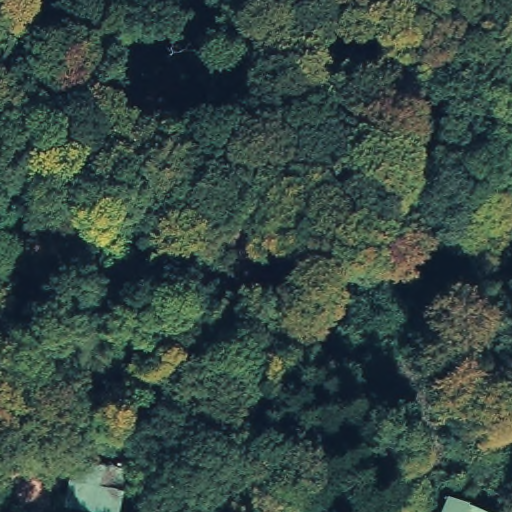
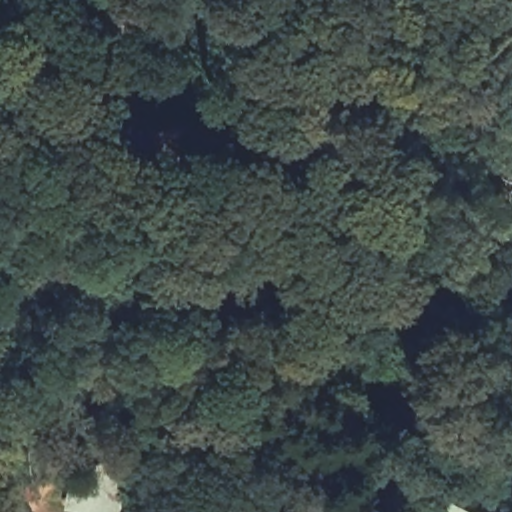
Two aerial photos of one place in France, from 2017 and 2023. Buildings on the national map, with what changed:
unchanged [(70,461),(125,469),(119,512),(62,512),(70,461)]
unchanged [(492,512),(458,512),(463,500),(492,512)]

